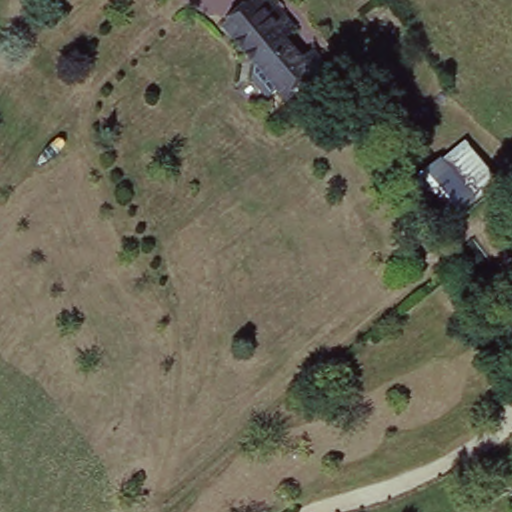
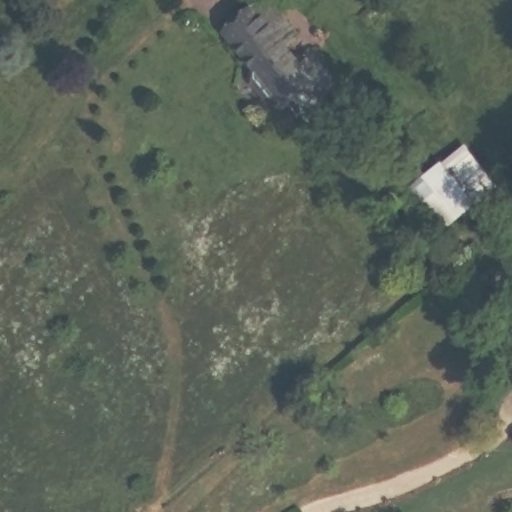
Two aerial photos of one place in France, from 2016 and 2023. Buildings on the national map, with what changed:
unchanged [(252,0),(276,0),(293,23),(283,30),(302,53),(312,45),(335,72),(320,89),(323,92),(312,102),(304,96),(297,103),(286,91),(284,93),(274,82),(265,90),(250,71),(252,54),(226,23),(252,0)]
unchanged [(401,193),(463,145),(496,187),(443,236),(401,193)]
unchanged [(512,428),(512,431),(511,429),(512,428)]

